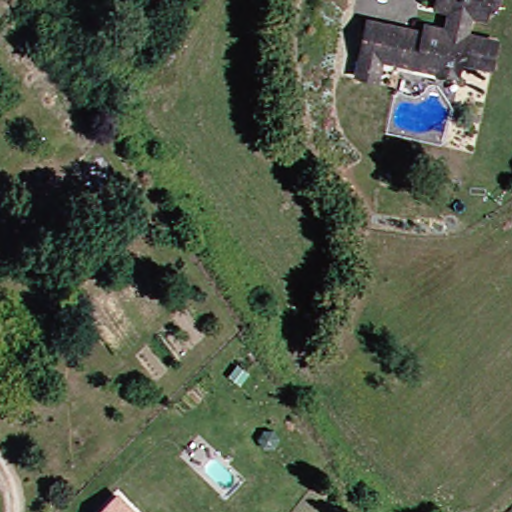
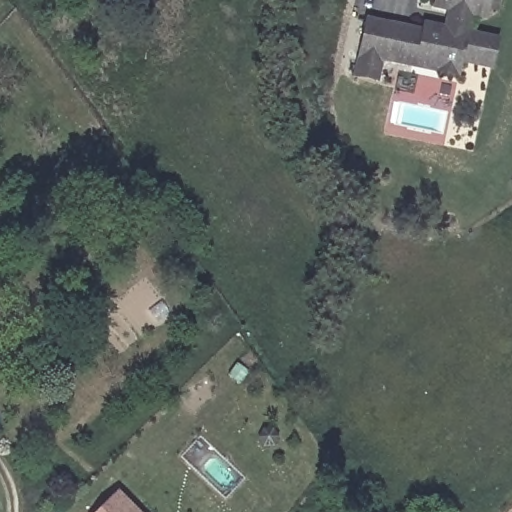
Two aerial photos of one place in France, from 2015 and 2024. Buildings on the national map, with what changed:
unchanged [(365,77),(368,57),(374,25),(435,35),(435,26),(462,30),(463,13),(442,10),(443,0),(510,0),(509,11),(498,9),(497,19),(472,15),(472,36),(505,40),(502,68),(468,63),(467,75),(389,62),(387,80),(365,77)]
unchanged [(136,512),(100,512),(120,494),(136,512)]

